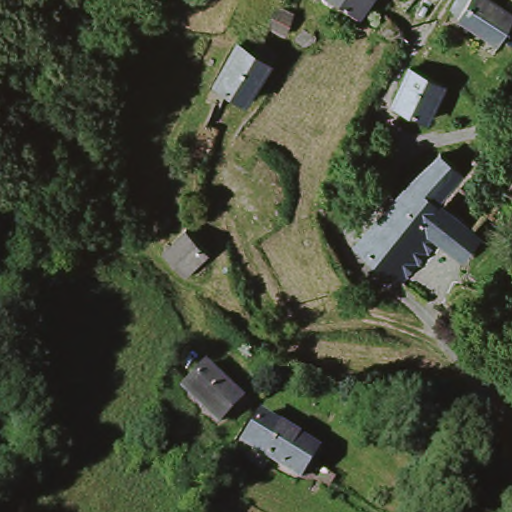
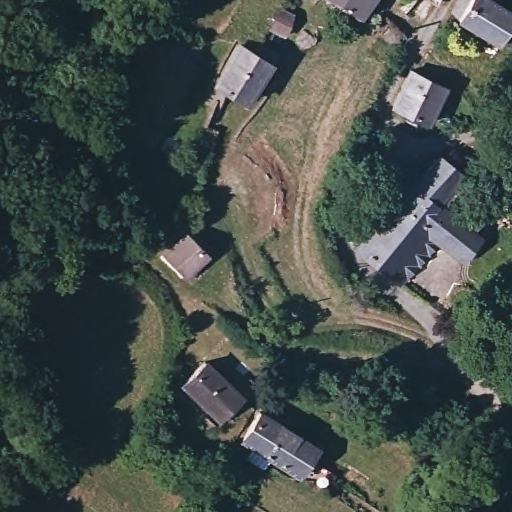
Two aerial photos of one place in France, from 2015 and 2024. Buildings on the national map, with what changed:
unchanged [(367,18),(346,7),(332,0),(379,0),(367,18)]
unchanged [(455,10),(461,0),(496,0),(512,9),(512,26),(503,41),(455,10)]
unchanged [(279,30),(284,32),(275,50),(264,44),(273,27),(279,30)]
unchanged [(277,60),(256,96),(234,88),(228,95),(214,86),(235,50),(251,57),(256,51),(277,60)]
unchanged [(415,112),(410,110),(407,115),(398,111),(400,105),(397,103),(410,72),(438,85),(424,114),(415,112)]
unchanged [(357,240),(412,181),(439,155),(461,171),(454,182),(457,184),(442,202),(470,229),(478,235),(461,255),(437,237),(399,277),(357,240)]
unchanged [(208,257),(185,280),(162,256),(187,232),(208,257)]
unchanged [(185,393),(203,366),(245,393),(225,420),(185,393)]
unchanged [(305,470),(247,443),(263,411),(317,440),(305,470)]

